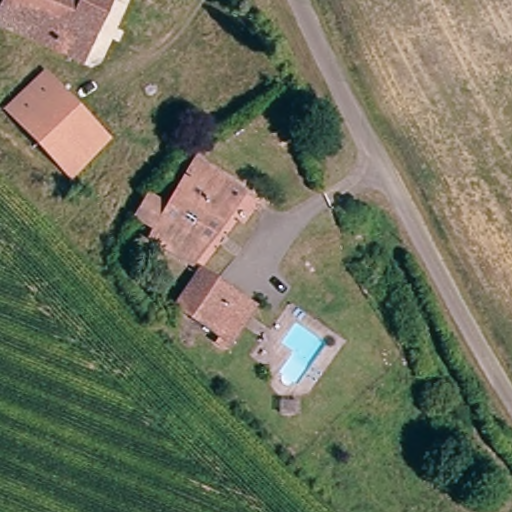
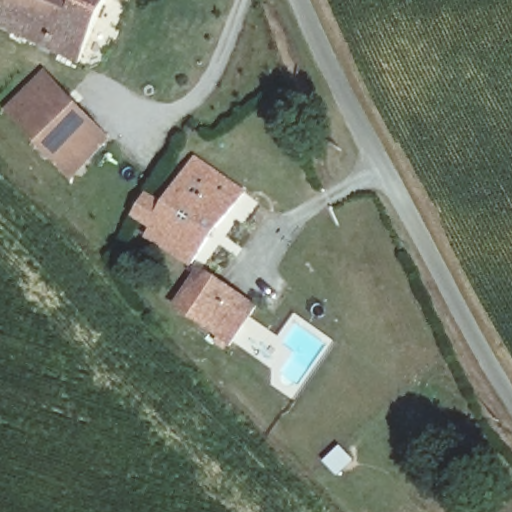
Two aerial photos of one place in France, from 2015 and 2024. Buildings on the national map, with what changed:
unchanged [(0,27),(0,23),(10,0),(107,0),(76,64),(0,27)]
unchanged [(81,182),(15,133),(28,122),(11,98),(41,68),(114,147),(81,182)]
unchanged [(245,186),(197,259),(149,232),(154,222),(140,213),(154,188),(172,198),(197,156),(245,186)]
unchanged [(257,301),(233,341),(230,340),(227,345),(218,340),(220,335),(174,306),(201,265),(257,301)]

